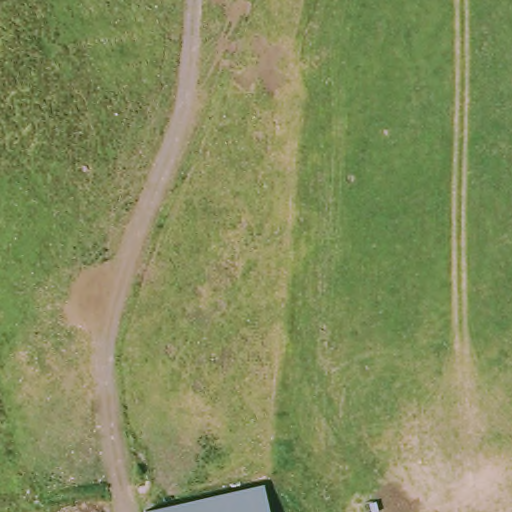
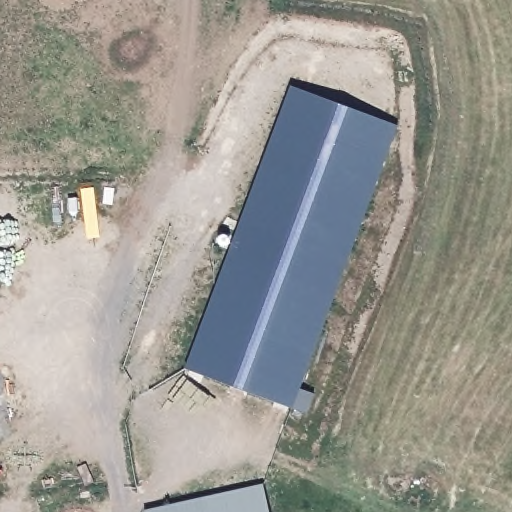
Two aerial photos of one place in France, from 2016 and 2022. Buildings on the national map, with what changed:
new [(232,249),(224,247),(219,244),(218,241),(219,239),(220,236),(224,236),(227,236),(230,237),(236,240),(294,87),(400,126),(294,407),(187,367),(232,249)]
unchanged [(262,484),(268,512),(155,512),(262,484)]

